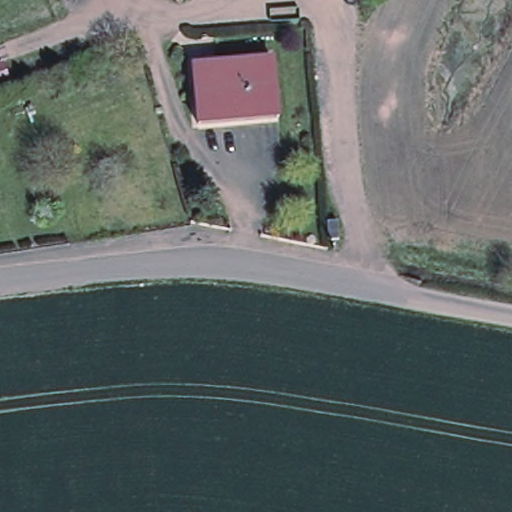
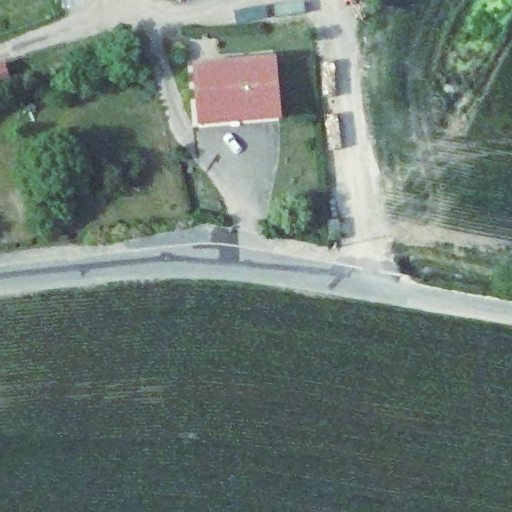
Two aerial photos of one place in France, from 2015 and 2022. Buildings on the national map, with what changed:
unchanged [(185,5),(178,0),(189,0),(185,5)]
unchanged [(279,65),(282,118),(202,125),(199,71),(279,65)]

